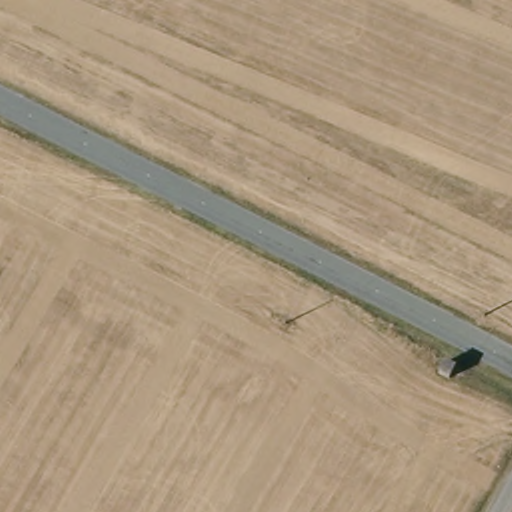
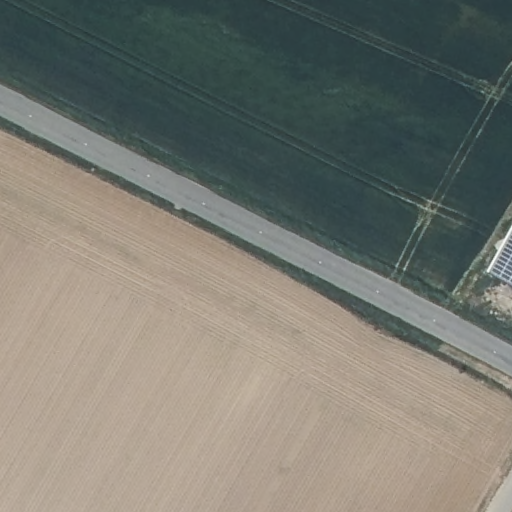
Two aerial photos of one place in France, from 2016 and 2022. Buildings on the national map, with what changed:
new [(488,268),(512,228),(512,281),(488,268)]

